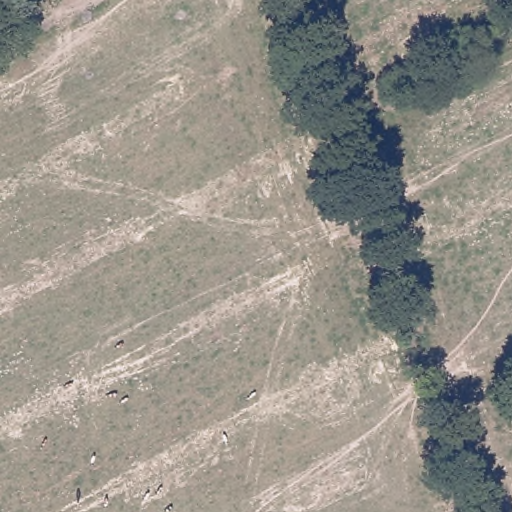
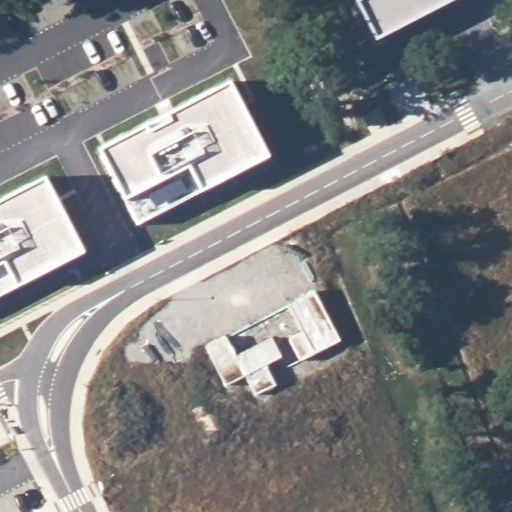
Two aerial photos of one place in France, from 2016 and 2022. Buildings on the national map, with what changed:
new [(376,40),(355,0),(454,0),(376,40)]
new [(230,80),(269,157),(202,191),(137,225),(124,201),(98,149),(230,80)]
new [(379,108),(384,118),(368,126),(363,116),(379,108)]
new [(84,251),(16,287),(0,296),(0,198),(44,174),(84,251)]

